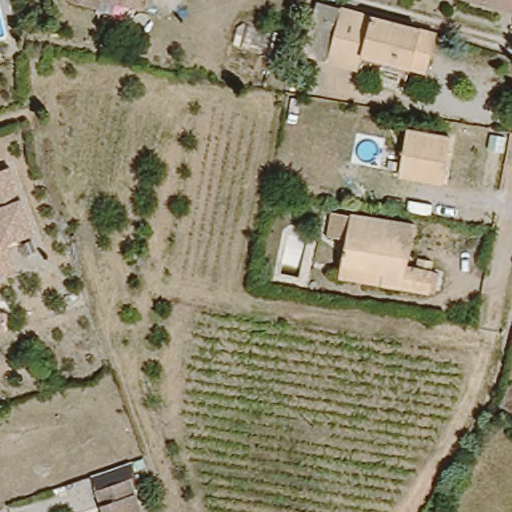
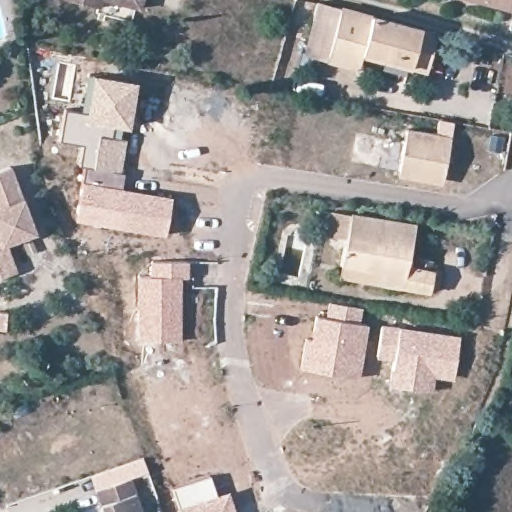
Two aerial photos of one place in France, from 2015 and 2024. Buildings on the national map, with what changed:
unchanged [(65,0),(99,0),(97,9),(65,0)]
unchanged [(134,9),(101,0),(141,0),(139,10),(134,9)]
unchanged [(267,9),(269,0),(304,0),(300,17),(267,9)]
unchanged [(314,0),(329,0),(437,28),(427,66),(411,63),(412,55),(382,46),(379,54),(363,50),(359,63),(323,54),(302,49),(310,16),(314,0)]
new [(83,166),(80,165),(82,144),(59,140),(65,109),(85,111),(92,73),(137,81),(128,129),(124,128),(122,136),(127,137),(122,172),(124,172),(122,187),(173,196),(166,236),(74,220),(81,180),(83,166)]
unchanged [(445,180),(397,171),(403,124),(452,132),(445,180)]
unchanged [(33,233),(3,242),(12,271),(0,275),(0,167),(11,164),(33,233)]
unchanged [(340,234),(318,231),(320,218),(323,204),(413,218),(409,257),(433,261),(429,281),(376,272),(336,266),(339,252),(340,234)]
new [(149,274),(150,259),(190,260),(189,277),(182,277),(182,340),(136,340),(137,275),(149,274)]
new [(308,336),(314,313),(324,315),(327,299),(363,307),(360,321),(369,323),(358,378),(299,367),(304,336),(308,336)]
unchanged [(0,333),(0,309),(11,317),(1,333),(0,333)]
new [(375,359),(381,322),(399,325),(461,334),(453,380),(435,377),(431,391),(388,386),(391,362),(375,359)]
demolished [(18,366),(30,348),(43,357),(32,374),(18,366)]
new [(236,512),(178,512),(177,507),(173,488),(210,474),(217,493),(229,489),(236,512)]
unchanged [(96,510),(90,494),(122,481),(135,512),(97,512),(96,510)]

